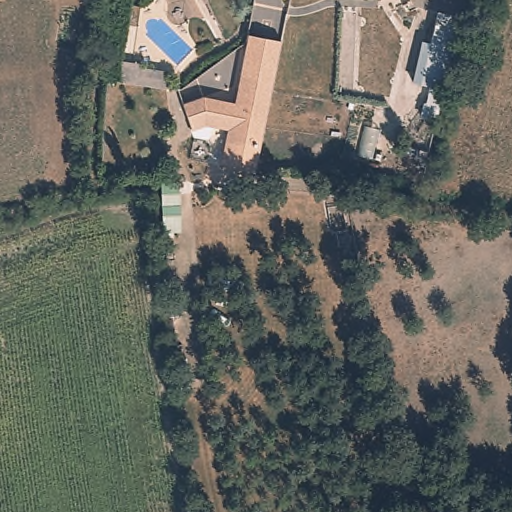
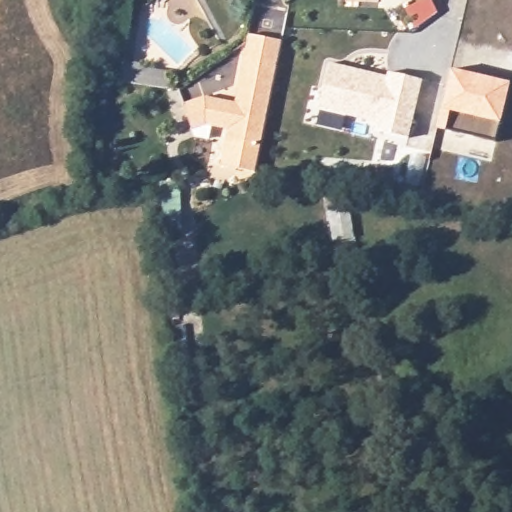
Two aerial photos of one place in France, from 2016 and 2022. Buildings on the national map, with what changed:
unchanged [(221,166),(228,130),(207,126),(192,133),(182,104),(207,95),(236,102),(249,35),(283,42),(258,170),(221,166)]
unchanged [(116,81),(119,60),(141,64),(141,69),(169,71),(166,89),(116,81)]
new [(329,62),(386,76),(388,70),(423,80),(411,139),(374,130),(375,122),(319,110),(329,62)]
new [(451,69),(511,82),(502,124),(500,123),(496,142),(436,129),(451,69)]

